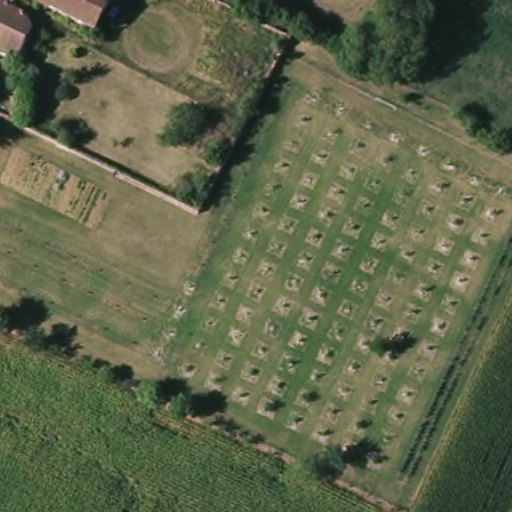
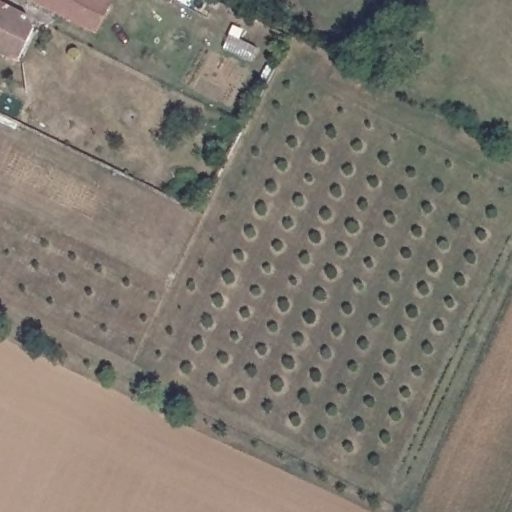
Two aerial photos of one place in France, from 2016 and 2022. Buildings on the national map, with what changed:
unchanged [(94,33),(27,0),(100,0),(108,4),(94,33)]
unchanged [(37,35),(20,69),(0,59),(0,5),(31,21),(37,35)]

